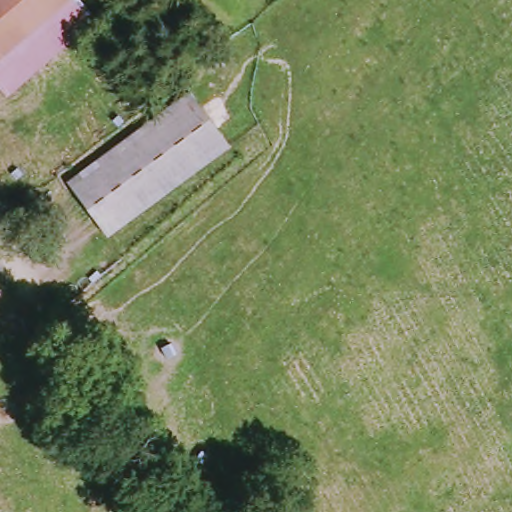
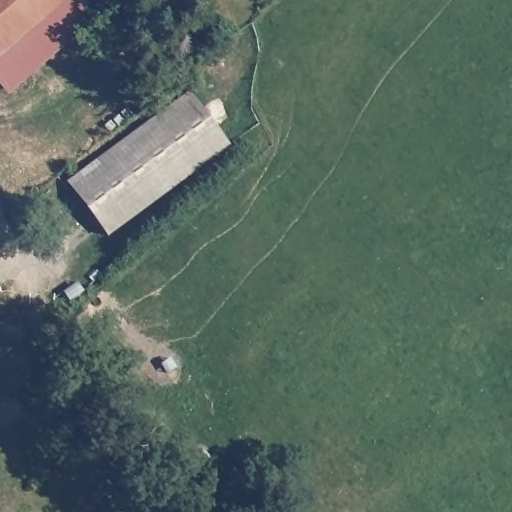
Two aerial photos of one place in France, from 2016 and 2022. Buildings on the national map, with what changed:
unchanged [(0,99),(0,0),(77,0),(95,20),(69,42),(2,101),(0,99)]
unchanged [(112,236),(71,184),(192,93),(234,146),(112,236)]

